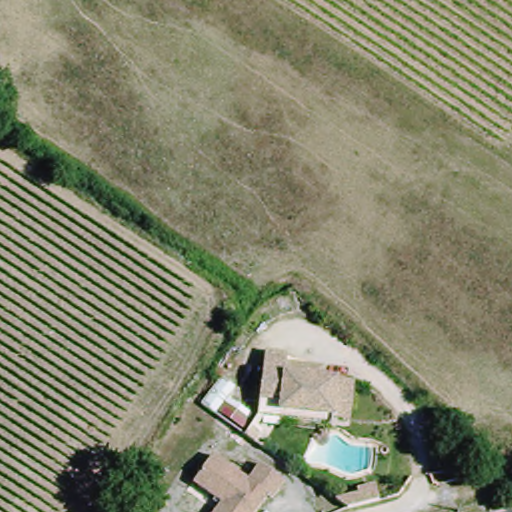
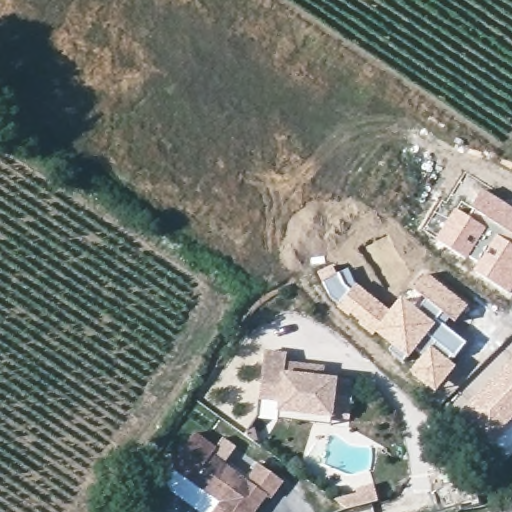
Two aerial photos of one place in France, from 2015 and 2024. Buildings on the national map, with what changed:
new [(512,206),(512,235),(470,206),(483,188),(512,206)]
new [(434,239),(455,207),(487,228),(467,260),(434,239)]
new [(512,235),(512,244),(496,235),(478,262),(469,257),(487,228),(468,215),(473,209),(512,235)]
new [(512,290),(509,295),(473,270),(496,235),(512,244),(512,290)]
new [(337,273),(348,269),(354,285),(350,289),(337,303),(329,295),(317,272),(332,265),(337,273)]
new [(427,336),(404,362),(336,305),(356,282),(390,309),(402,295),(418,307),(425,299),(412,287),(424,271),(468,305),(454,322),(442,314),(449,320),(445,325),(467,343),(452,361),(430,343),(421,355),(416,349),(427,336)]
new [(430,343),(452,361),(456,365),(434,393),(408,372),(430,343)]
unchanged [(255,415),(263,350),(283,353),(281,367),(335,374),(335,377),(354,379),(351,417),(332,416),(280,409),(274,426),(263,445),(243,432),(255,415)]
new [(512,420),(490,442),(460,414),(512,359),(512,420)]
unchanged [(266,491),(252,512),(212,512),(221,500),(192,480),(211,451),(246,476),(258,459),(282,476),(270,493),(266,491)]
unchanged [(329,503),(350,497),(348,492),(366,487),(370,502),(340,511),(329,503)]

